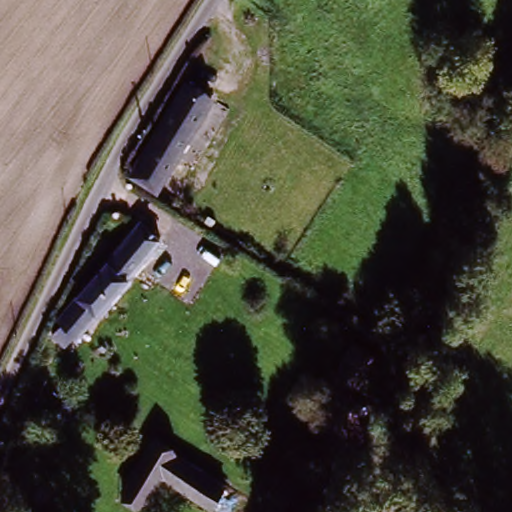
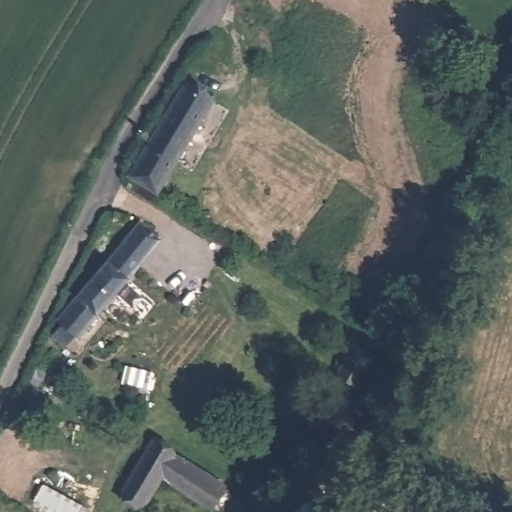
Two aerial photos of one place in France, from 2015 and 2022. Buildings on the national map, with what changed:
unchanged [(137,164),(195,75),(218,91),(162,180),(137,164)]
unchanged [(63,329),(59,324),(137,224),(158,243),(78,342),(76,339),(66,352),(53,342),(63,329)]
unchanged [(352,389),(335,379),(350,347),(367,357),(352,389)]
unchanged [(210,511),(162,483),(148,512),(142,512),(117,501),(147,441),(227,486),(210,511)]

